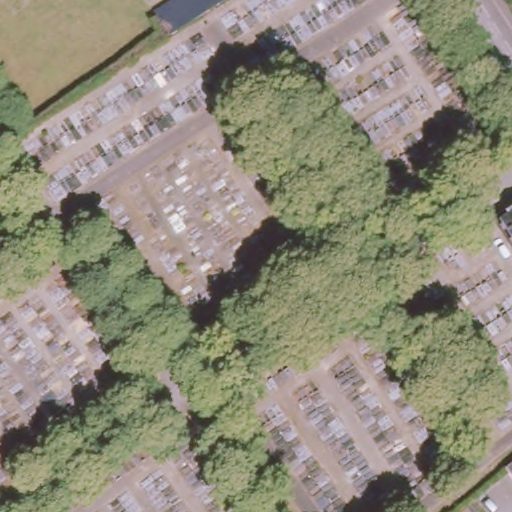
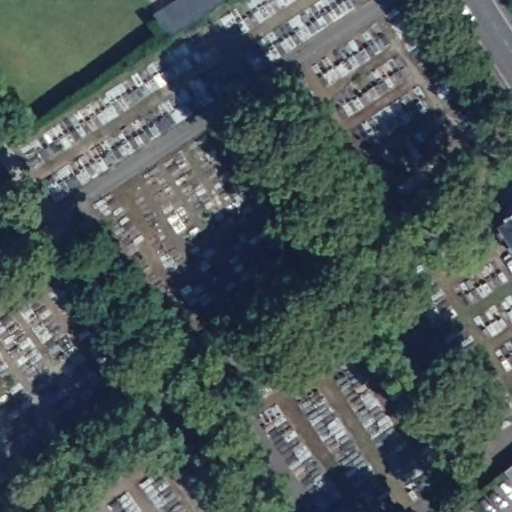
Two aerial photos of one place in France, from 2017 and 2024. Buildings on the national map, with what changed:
unchanged [(154,11),(171,0),(225,0),(171,36),(154,11)]
unchanged [(512,213),(512,254),(494,225),(512,213)]
unchanged [(512,463),(512,479),(504,470),(512,463)]

